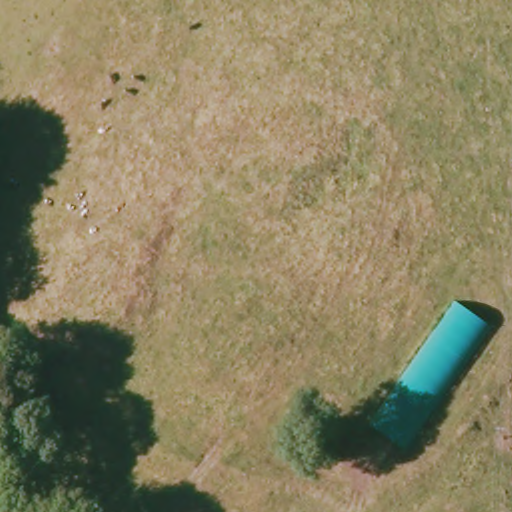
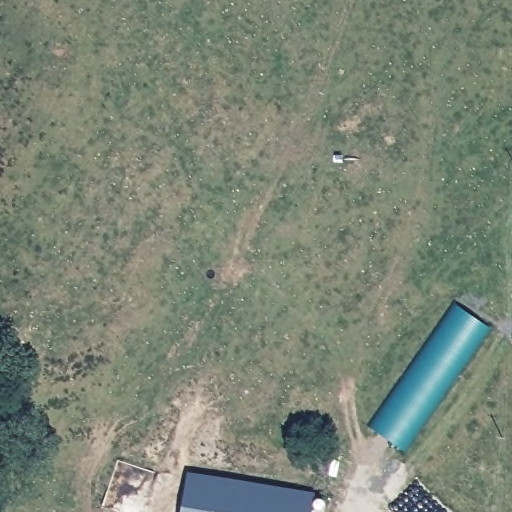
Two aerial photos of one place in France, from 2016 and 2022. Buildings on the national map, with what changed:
unchanged [(371,427),(458,305),(489,327),(402,450),(371,427)]
new [(315,493),(314,498),(324,499),(326,504),(324,510),(322,512),(313,512),(182,512),(188,472),(315,493)]

